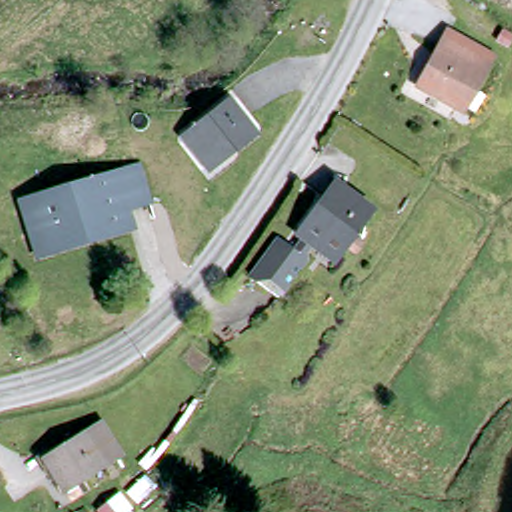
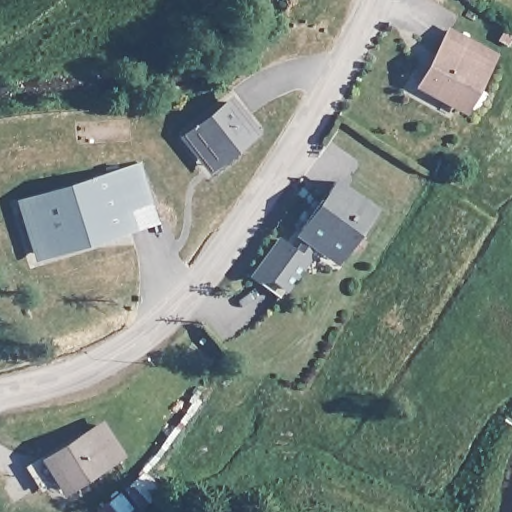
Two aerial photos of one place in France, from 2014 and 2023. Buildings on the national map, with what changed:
unchanged [(431,100),(459,48),(476,56),(503,70),(474,121),(444,106),(431,100)]
unchanged [(261,134),(208,173),(179,136),(231,96),(261,134)]
unchanged [(13,199),(26,195),(94,177),(91,168),(136,155),(147,191),(121,201),(127,218),(40,244),(26,249),(13,199)]
unchanged [(372,258),(364,252),(356,264),(343,255),(331,248),(321,262),(323,269),(298,306),(269,287),(294,248),(311,260),(324,241),(320,239),(339,209),(336,207),(349,188),(376,206),(389,214),(370,242),(379,248),(372,258)]
unchanged [(45,470),(53,465),(88,441),(91,446),(106,434),(128,463),(76,502),(68,489),(59,494),(45,470)]

